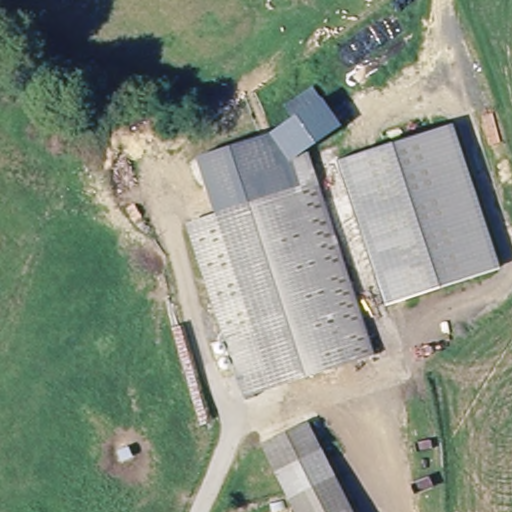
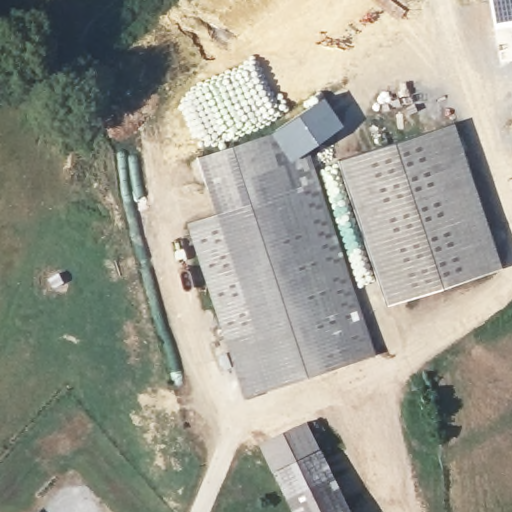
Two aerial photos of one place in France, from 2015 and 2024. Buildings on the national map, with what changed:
new [(511,27),(511,25),(494,28),(489,0),(512,0),(512,27),(511,27)]
unchanged [(197,159),(272,140),(295,123),(282,108),(312,85),(341,134),(316,152),(325,180),(215,217),(197,159)]
unchanged [(337,160),(454,124),(500,269),(385,304),(337,160)]
unchanged [(248,328),(215,217),(325,180),(379,362),(244,404),(226,338),(248,328)]
unchanged [(185,229),(215,217),(248,328),(226,338),(185,229)]
unchanged [(284,498),(259,443),(311,420),(337,469),(284,498)]
unchanged [(337,469),(355,512),(290,512),(284,498),(337,469)]

